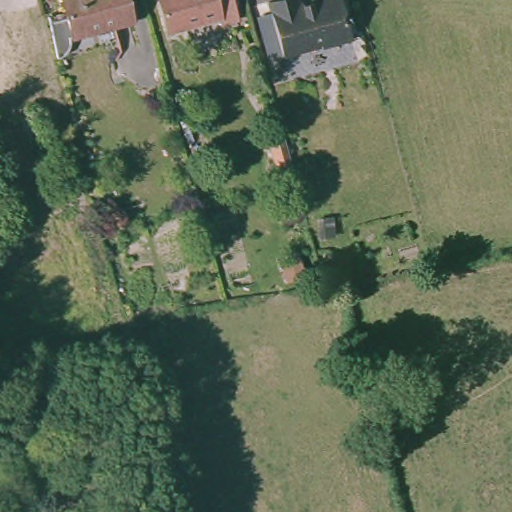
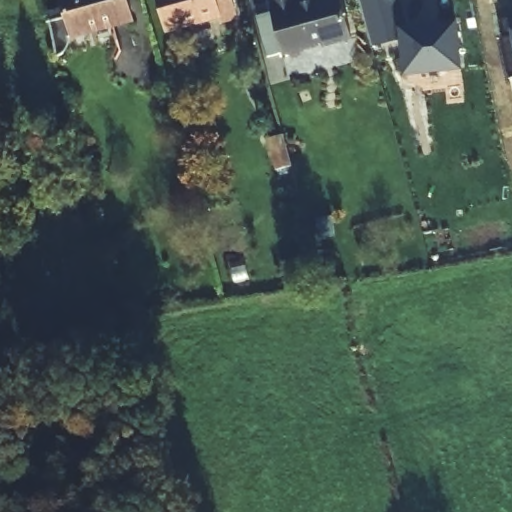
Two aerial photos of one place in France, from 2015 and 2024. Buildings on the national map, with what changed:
unchanged [(139,19),(75,36),(76,39),(76,42),(75,46),(74,49),(70,52),(66,55),(62,56),(55,19),(72,15),(67,0),(133,0),(139,19)]
unchanged [(237,18),(220,22),(218,15),(167,29),(159,0),(232,0),(237,18)]
unchanged [(270,0),(299,0),(300,3),(314,0),(342,0),(352,38),(322,46),(321,44),(319,44),(282,54),(269,0),(270,0)]
new [(411,24),(459,21),(463,71),(404,77),(399,40),(373,47),(360,0),(403,0),(411,24)]
new [(510,26),(512,26),(512,36),(510,26)]
new [(511,78),(502,38),(512,36),(512,78),(511,78)]
unchanged [(283,133),(292,165),(277,169),(269,137),(283,133)]

